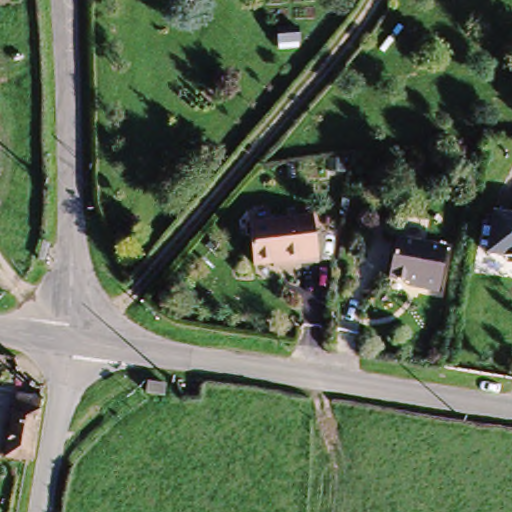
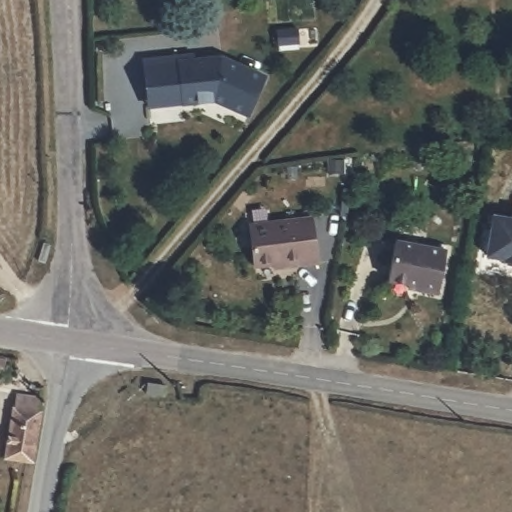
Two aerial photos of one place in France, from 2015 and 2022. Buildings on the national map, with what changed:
new [(195,51),(196,57),(221,53),(268,75),(248,116),(214,102),(146,109),(141,59),(195,51)]
unchanged [(445,159),(443,174),(426,171),(429,156),(445,159)]
unchanged [(324,172),(325,185),(310,185),(310,172),(324,172)]
unchanged [(314,215),(320,260),(303,261),(303,257),(260,263),(255,222),(314,215)]
unchanged [(512,258),(487,254),(493,215),(512,218),(512,258)]
unchanged [(398,236),(450,247),(441,292),(407,287),(405,302),(386,299),(388,283),(398,236)]
unchanged [(35,460),(7,457),(15,399),(43,403),(35,460)]

